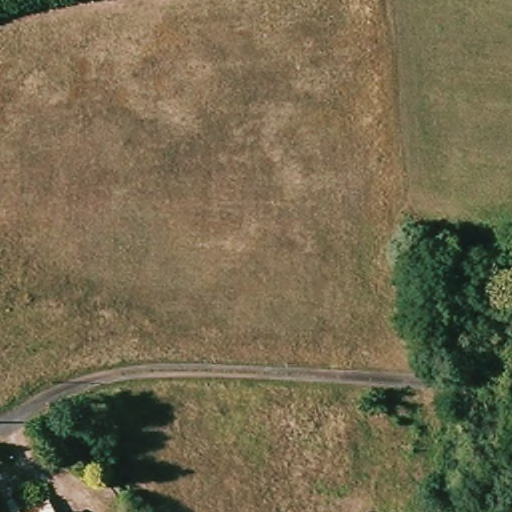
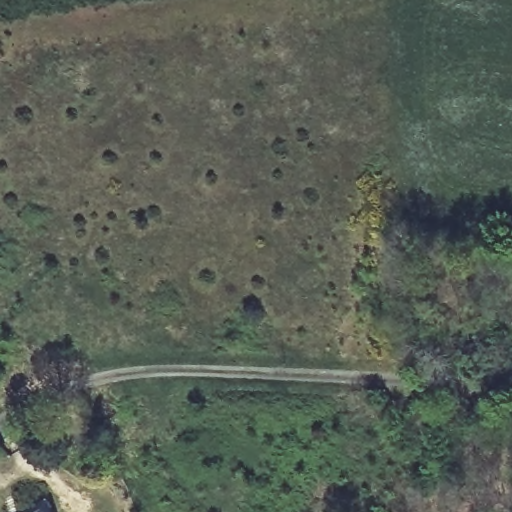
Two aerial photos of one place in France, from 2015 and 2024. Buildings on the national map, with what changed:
unchanged [(48,511),(49,512),(47,512),(48,511)]

